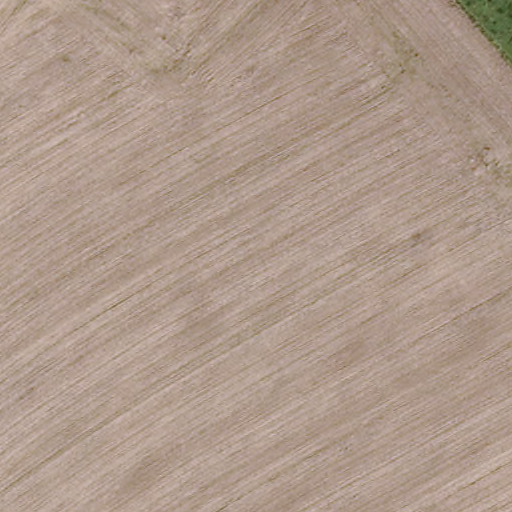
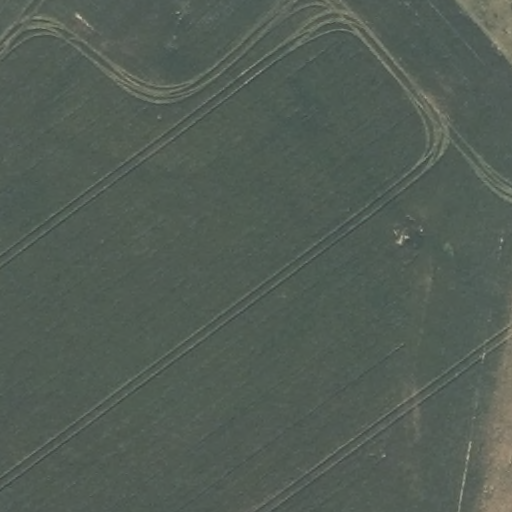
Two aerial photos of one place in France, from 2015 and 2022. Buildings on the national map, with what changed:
[]

